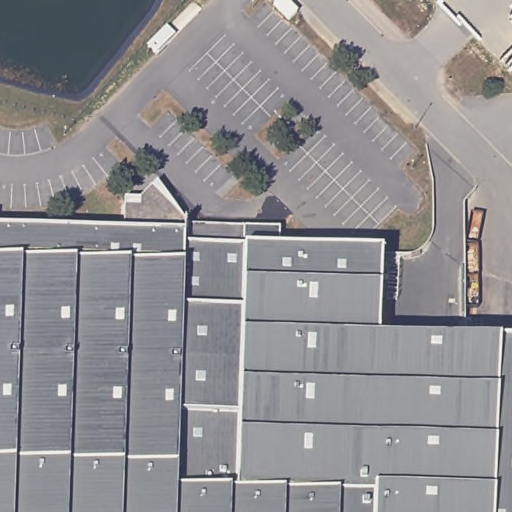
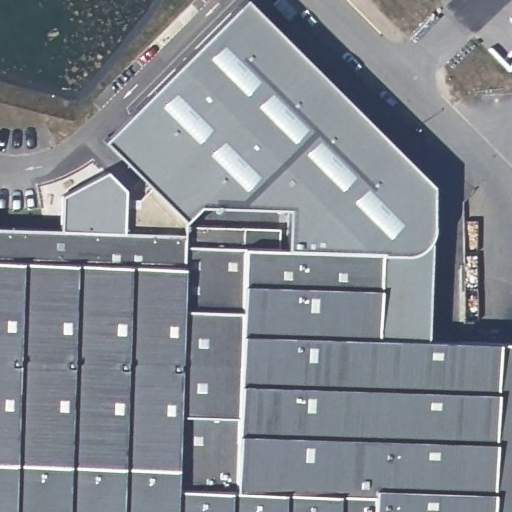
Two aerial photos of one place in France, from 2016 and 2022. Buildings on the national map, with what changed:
new [(249,0),(433,182),(433,230),(430,237),(427,341),(373,340),(374,306),(375,284),(376,254),(286,250),(288,207),(198,205),(179,222),(149,187),(102,139),(241,0),(249,0)]
unchanged [(179,226),(239,229),(238,249),(376,254),(375,284),(374,306),(373,340),(512,344),(512,512),(0,512),(0,229),(61,231),(60,194),(106,169),(125,187),(124,200),(139,201),(149,187),(179,222),(179,226)]

